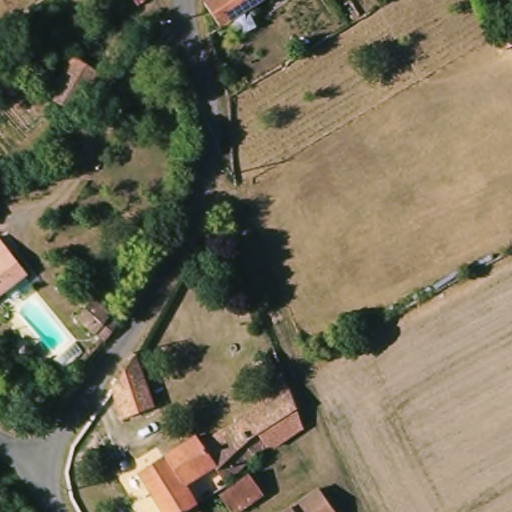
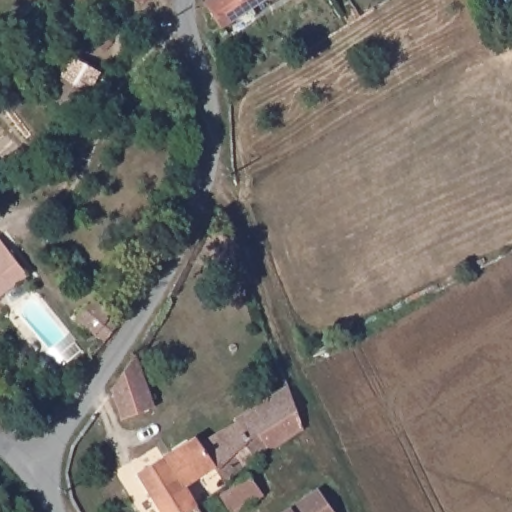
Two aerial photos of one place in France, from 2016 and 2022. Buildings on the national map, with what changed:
unchanged [(163,1),(142,15),(134,0),(163,0),(163,1)]
unchanged [(227,31),(212,0),(275,0),(227,31)]
unchanged [(45,100),(60,77),(77,56),(97,69),(102,71),(86,95),(70,117),(52,104),(45,100)]
unchanged [(0,303),(0,247),(31,283),(0,303)]
unchanged [(98,346),(72,315),(92,297),(114,323),(98,346)]
unchanged [(120,421),(111,390),(137,356),(152,409),(120,421)]
unchanged [(222,487),(214,472),(212,469),(182,485),(194,506),(183,512),(157,512),(136,474),(194,441),(200,451),(235,430),(234,425),(289,396),(296,418),(302,437),(267,457),(266,453),(255,460),(222,487)]
unchanged [(262,501),(242,512),(225,512),(217,499),(249,480),(262,501)]
unchanged [(330,512),(286,512),(320,493),(330,512)]
unchanged [(199,512),(191,512),(197,508),(199,512)]

